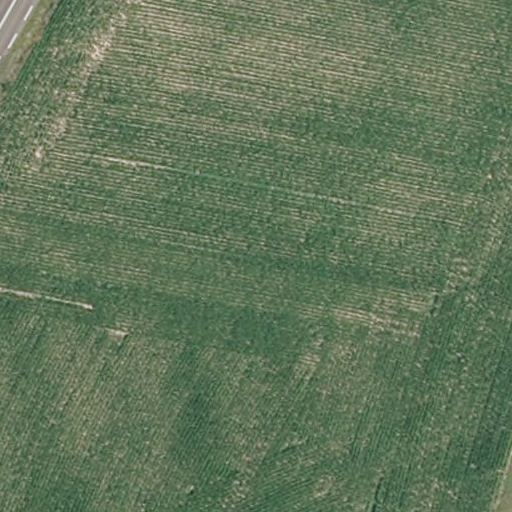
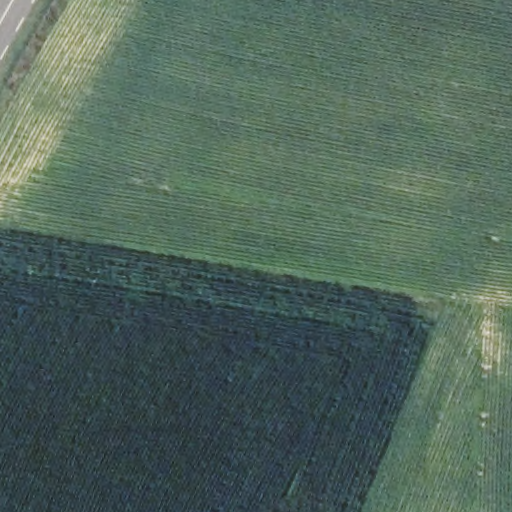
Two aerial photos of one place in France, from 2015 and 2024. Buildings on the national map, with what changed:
[]

